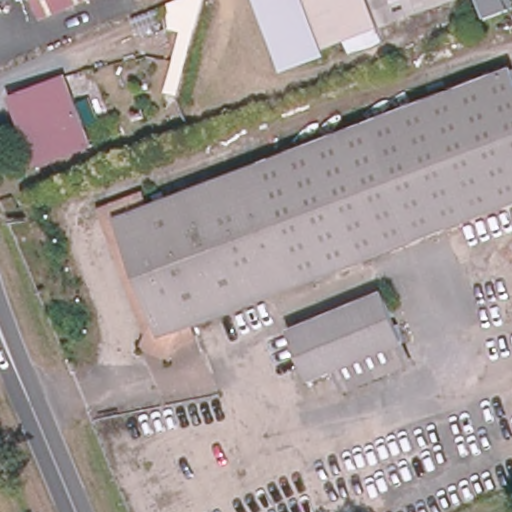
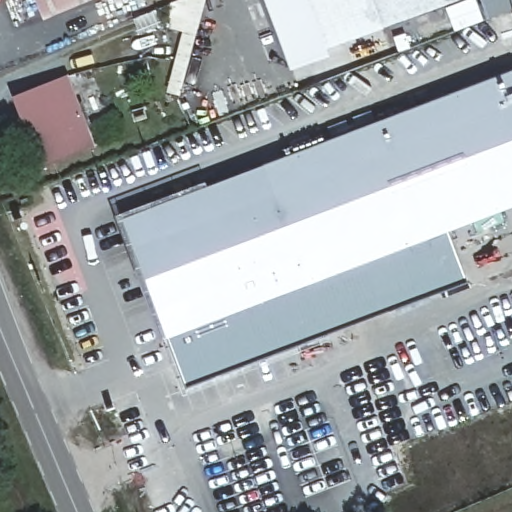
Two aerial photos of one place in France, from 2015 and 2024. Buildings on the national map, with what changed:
unchanged [(43,18),(36,0),(87,0),(43,18)]
unchanged [(179,96),(166,92),(182,32),(167,29),(164,6),(178,0),(203,0),(179,96)]
unchanged [(322,47),(324,53),(284,68),(258,0),(446,0),(322,47)]
unchanged [(488,18),(480,0),(512,0),(512,8),(488,18)]
unchanged [(512,69),(512,202),(192,324),(165,334),(121,218),(150,207),(512,69)]
unchanged [(86,149),(45,165),(20,98),(61,82),(86,149)]
new [(184,386),(168,333),(192,324),(449,227),(466,281),(184,386)]
demolished [(406,342),(401,344),(337,371),(313,381),(292,329),(385,291),(406,342)]

